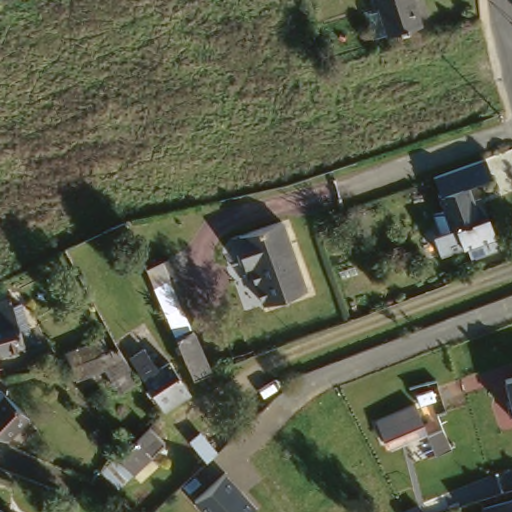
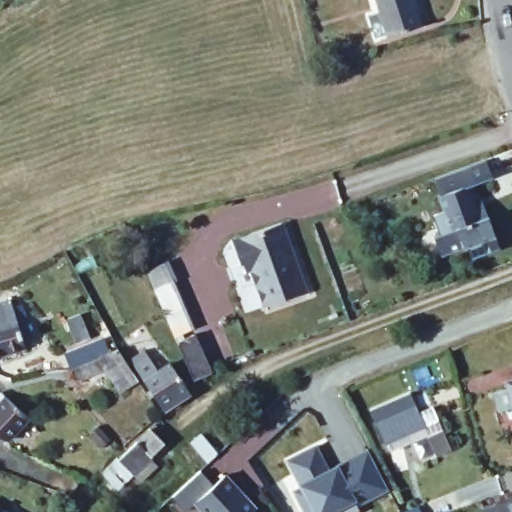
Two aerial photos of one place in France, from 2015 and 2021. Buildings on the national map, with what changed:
unchanged [(383,8),(381,0),(419,0),(426,22),(390,33),(376,37),(369,12),(383,8)]
unchanged [(440,217),(451,213),(445,199),(454,195),(447,178),(475,167),(499,158),(505,175),(481,184),(476,188),(489,220),(493,218),(501,238),(471,250),(463,232),(458,234),(449,238),(440,217)]
unchanged [(308,290),(267,305),(249,259),(241,262),(233,238),(283,219),(308,290)]
unchanged [(7,299),(9,304),(15,302),(29,335),(37,348),(24,356),(18,348),(0,354),(0,301),(7,299)]
unchanged [(187,302),(198,324),(180,332),(170,310),(187,302)]
unchanged [(142,378),(126,389),(106,363),(78,372),(72,361),(66,348),(104,331),(109,344),(117,341),(142,378)]
unchanged [(203,333),(220,369),(201,376),(185,341),(203,333)]
unchanged [(196,389),(171,405),(150,373),(175,357),(196,389)]
unchanged [(512,391),(509,380),(512,380),(512,391)]
unchanged [(4,389),(32,415),(12,436),(9,436),(0,433),(0,393),(4,389)]
unchanged [(414,404),(423,424),(387,441),(378,422),(414,404)]
unchanged [(512,408),(512,409),(511,408),(512,408)]
unchanged [(174,445),(157,459),(164,466),(146,482),(140,476),(123,489),(107,474),(122,460),(125,460),(158,430),(174,445)]
new [(318,444),(330,468),(370,447),(391,487),(360,503),(363,509),(358,512),(340,512),(338,509),(332,512),(308,512),(296,490),(304,486),(289,459),(318,444)]
unchanged [(188,449),(206,468),(195,477),(177,458),(188,449)]
unchanged [(220,476),(250,511),(249,512),(197,512),(189,503),(220,476)]
unchanged [(487,507),(512,501),(512,512),(488,512),(487,507)]
unchanged [(12,512),(0,512),(0,504),(12,512)]

